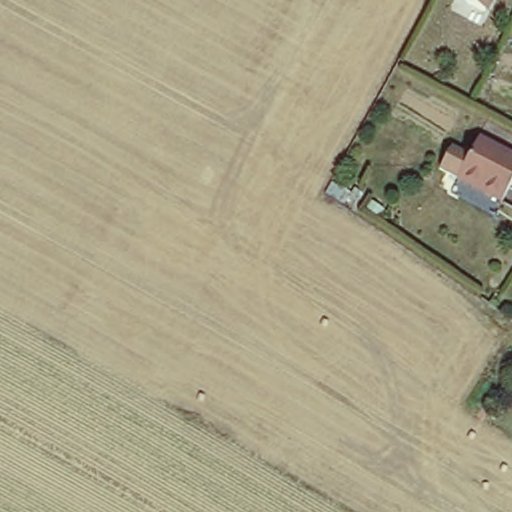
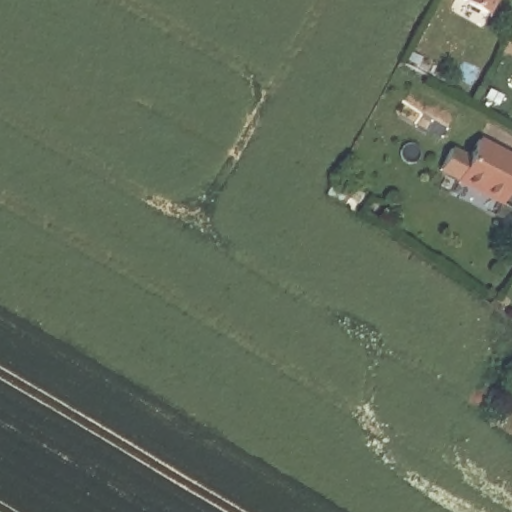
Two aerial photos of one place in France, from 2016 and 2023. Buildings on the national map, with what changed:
unchanged [(491,0),(484,11),(468,0),(491,0)]
unchanged [(512,176),(497,201),(441,171),(452,149),(467,156),(477,134),(512,153),(512,176)]

